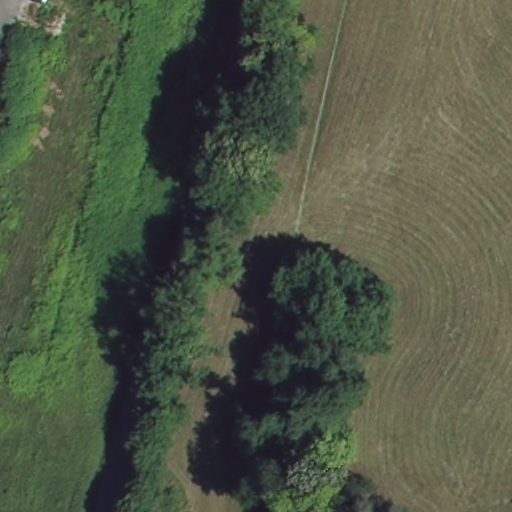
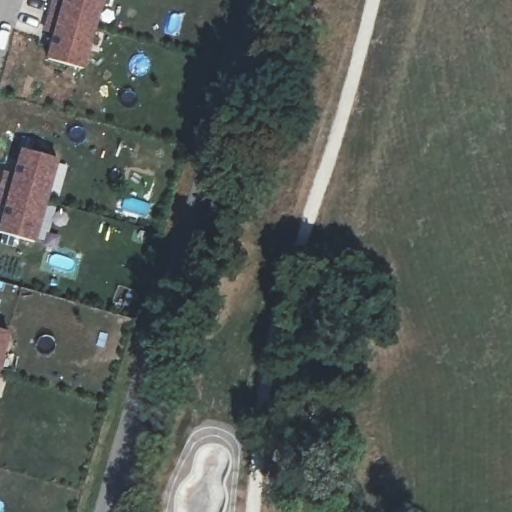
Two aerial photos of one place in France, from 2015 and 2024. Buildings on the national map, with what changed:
new [(41,29),(49,0),(61,0),(103,0),(85,69),(45,59),(51,32),(41,29)]
new [(34,241),(0,232),(0,216),(3,205),(0,204),(0,175),(1,170),(13,173),(19,149),(57,159),(34,241)]
new [(10,333),(0,367),(0,330),(10,333)]

